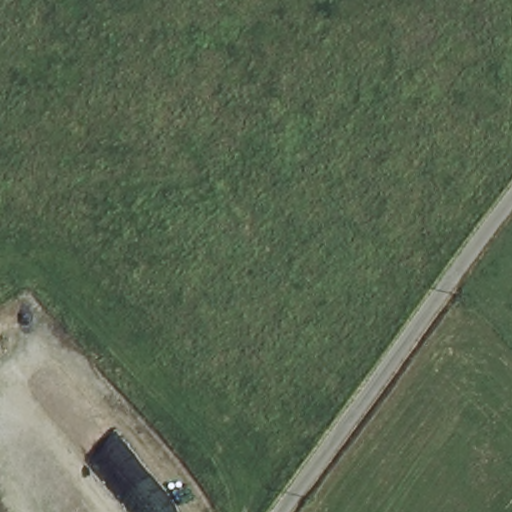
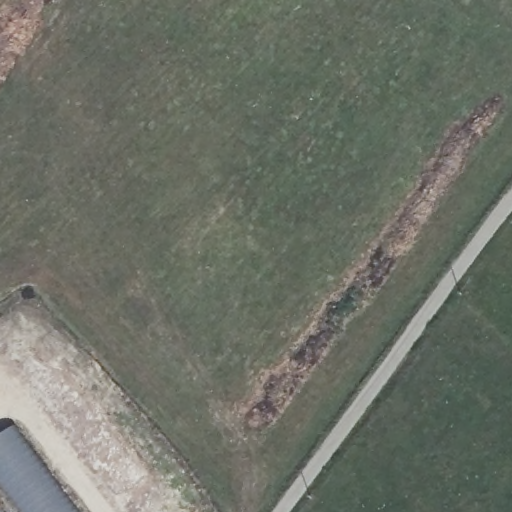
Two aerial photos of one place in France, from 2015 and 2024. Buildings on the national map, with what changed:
new [(0,489),(0,433),(12,424),(79,512),(17,512),(0,489)]

